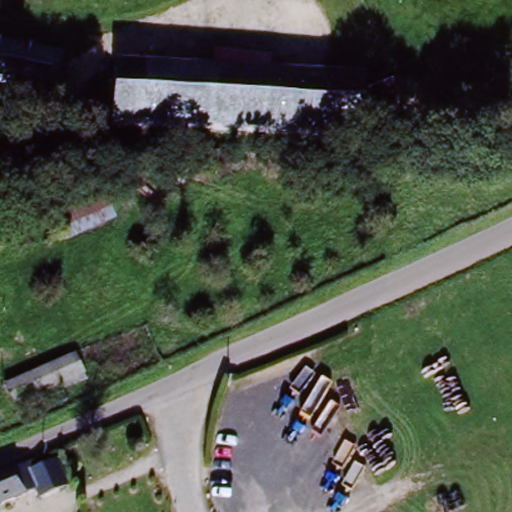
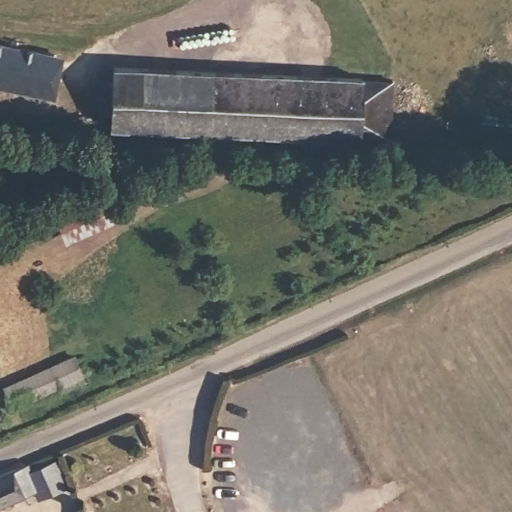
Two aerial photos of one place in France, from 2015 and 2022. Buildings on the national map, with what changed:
unchanged [(37,93),(0,85),(0,41),(47,51),(37,93)]
unchanged [(110,108),(117,51),(239,66),(361,83),(352,142),(110,108)]
unchanged [(401,89),(392,148),(352,142),(361,83),(401,89)]
unchanged [(67,244),(52,207),(102,185),(118,221),(67,244)]
unchanged [(67,358),(79,380),(13,408),(3,388),(67,358)]
unchanged [(30,496),(0,509),(0,476),(17,468),(30,496)]

